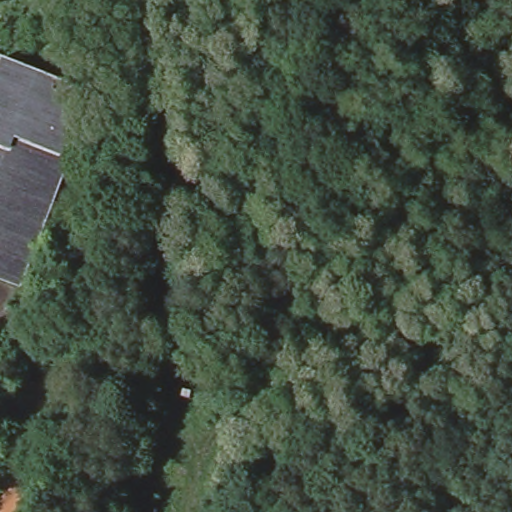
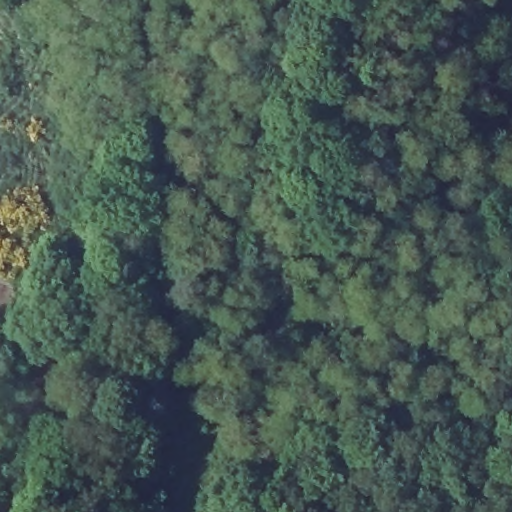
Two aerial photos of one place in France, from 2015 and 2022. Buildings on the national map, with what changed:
demolished [(90,88),(65,153),(70,156),(19,283),(0,276),(0,57),(1,55),(90,88)]

